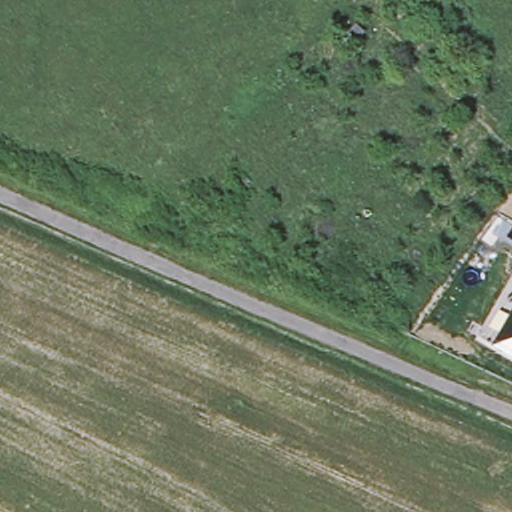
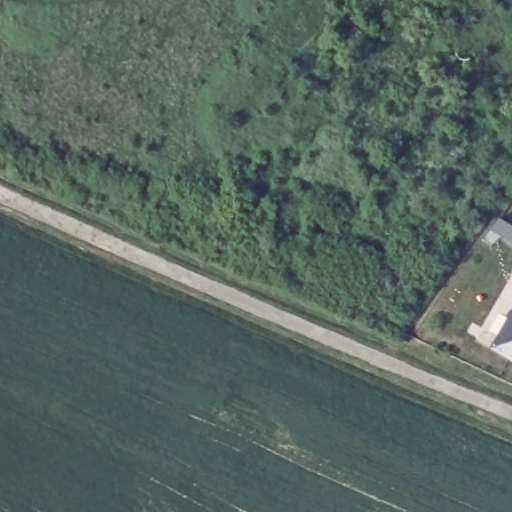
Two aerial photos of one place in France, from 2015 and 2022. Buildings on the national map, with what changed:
unchanged [(512,315),(512,360),(492,348),(512,315)]

